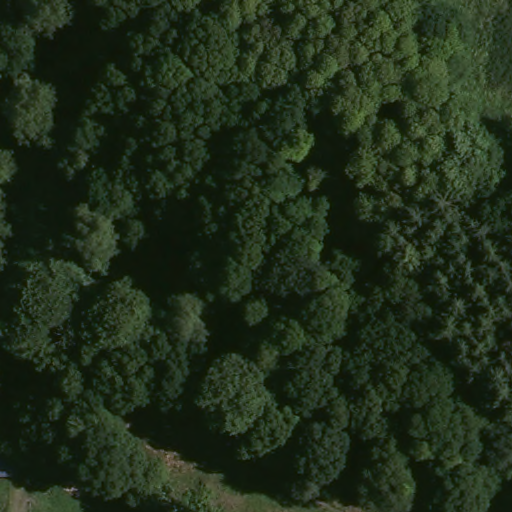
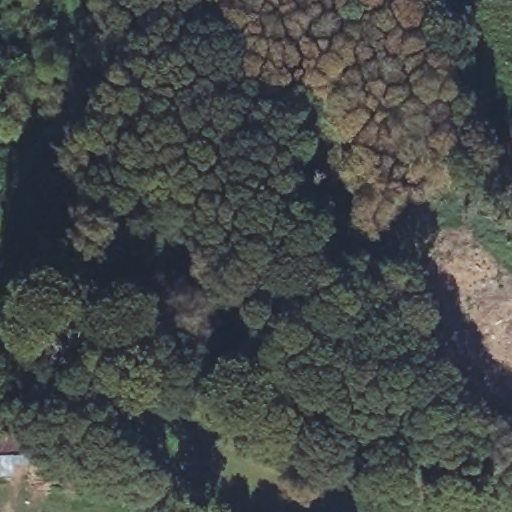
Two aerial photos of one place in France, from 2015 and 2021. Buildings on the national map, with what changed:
unchanged [(55,471),(0,474),(0,438),(54,438),(55,471)]

